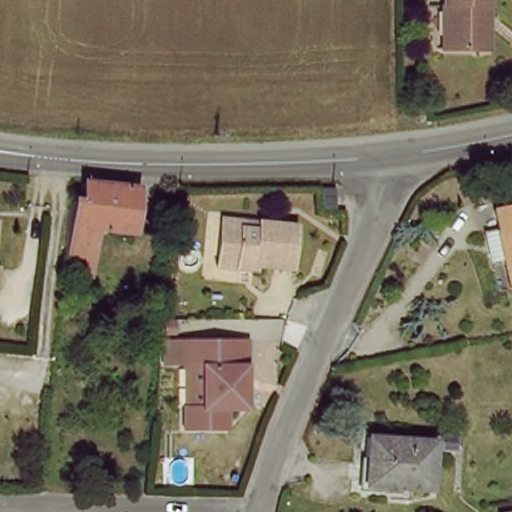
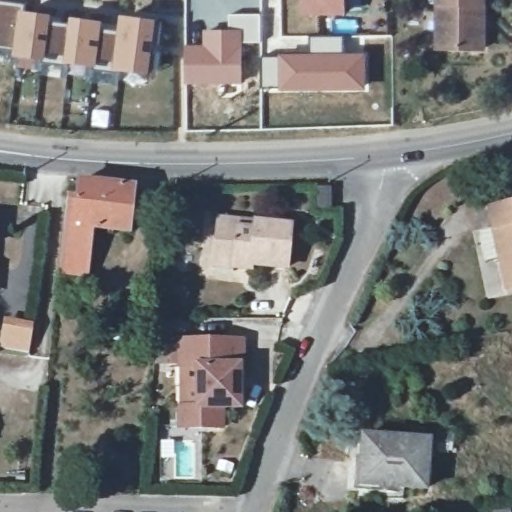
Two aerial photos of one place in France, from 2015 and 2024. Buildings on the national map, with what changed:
new [(26,11),(50,14),(48,21),(75,23),(76,18),(100,20),(100,27),(124,29),(126,16),(154,19),(153,44),(168,45),(165,75),(70,62),(69,66),(43,62),(43,58),(16,55),(17,52),(0,51),(0,0),(3,0),(26,3),(26,11)]
new [(350,0),(350,13),(306,14),(306,0),(350,0)]
unchanged [(445,58),(445,0),(490,0),(490,25),(490,35),(489,59),(445,58)]
new [(230,28),(228,14),(261,12),(262,43),(243,44),(243,84),(185,85),(184,43),(203,43),(203,29),(230,28)]
new [(264,39),(346,39),(345,57),(366,57),(366,88),(264,90),(264,39)]
unchanged [(63,286),(64,275),(72,199),(72,198),(83,199),(85,182),(140,189),(136,233),(98,229),(93,278),(73,276),(71,287),(63,286)]
unchanged [(511,254),(498,257),(492,227),(504,225),(500,206),(512,204),(512,259),(511,254)]
unchanged [(218,270),(220,263),(224,223),(243,225),(258,227),(260,227),(299,231),(294,273),(258,270),(258,274),(238,273),(236,272),(218,270)]
unchanged [(228,409),(228,428),(186,428),(186,407),(203,407),(203,367),(185,367),(185,364),(167,362),(167,342),(185,341),(185,340),(226,340),(246,340),(246,365),(246,409),(228,409)]
unchanged [(460,436),(459,450),(442,449),(443,434),(460,436)]
unchanged [(432,489),(366,484),(369,437),(435,441),(432,489)]

